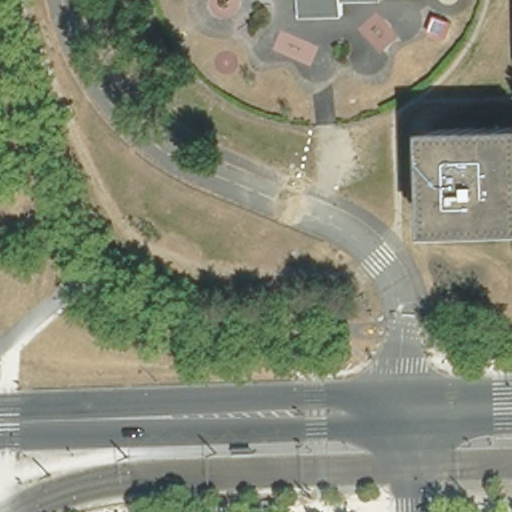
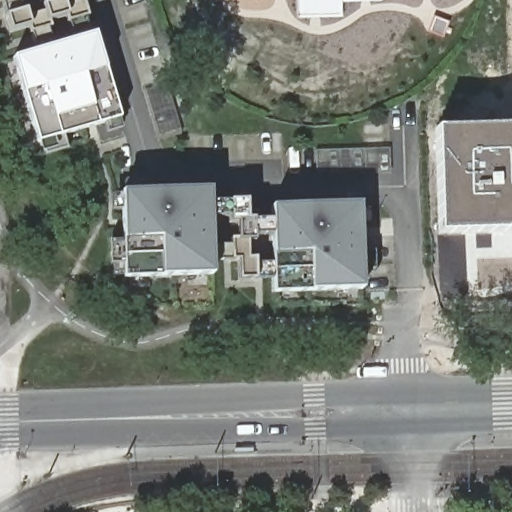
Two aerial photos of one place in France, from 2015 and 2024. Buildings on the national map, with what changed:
unchanged [(330,10),(330,25),(290,26),(289,0),(370,0),(370,9),(330,10)]
new [(37,141),(12,56),(96,33),(119,117),(37,141)]
unchanged [(512,236),(504,236),(439,239),(436,135),(512,133),(512,236)]
new [(160,275),(125,275),(123,239),(122,190),(209,188),(213,273),(160,275)]
new [(273,220),(273,235),(251,235),(252,242),(246,242),(246,258),(255,258),(255,262),(274,262),(274,279),(237,280),(236,260),(230,260),(213,261),(212,247),(230,245),(229,240),(236,240),(236,221),(227,221),(227,216),(210,216),(209,201),(247,200),(248,220),(273,220)]
new [(308,291),(275,290),(274,253),(272,205),(359,204),(363,289),(308,291)]

